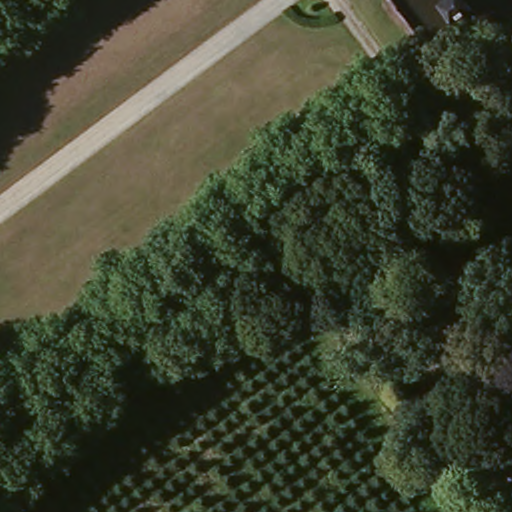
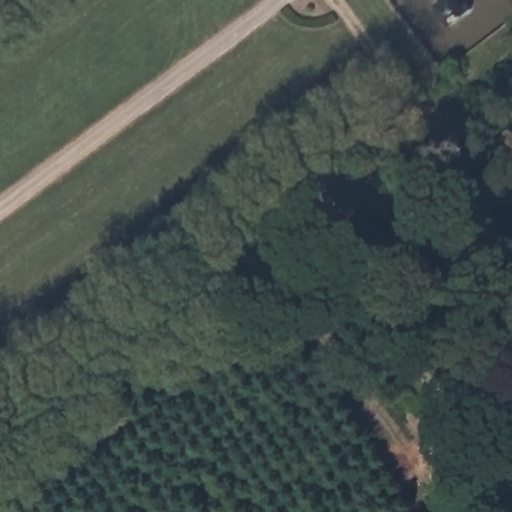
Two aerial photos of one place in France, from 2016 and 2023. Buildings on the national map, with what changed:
unchanged [(432,0),(467,0),(446,17),(432,0)]

